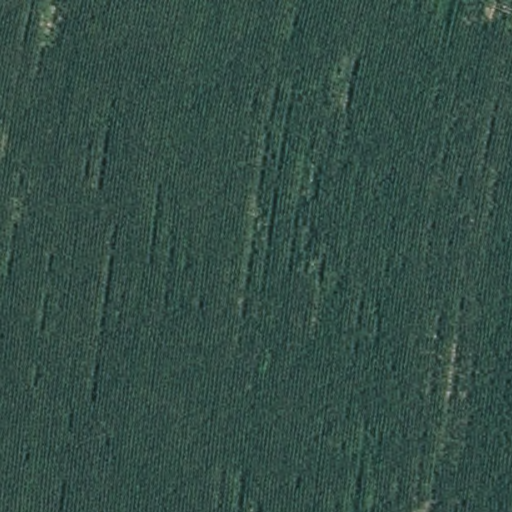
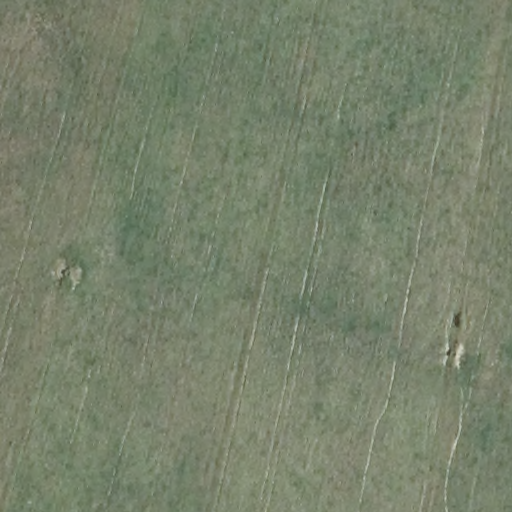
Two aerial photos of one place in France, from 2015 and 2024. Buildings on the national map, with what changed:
[]

